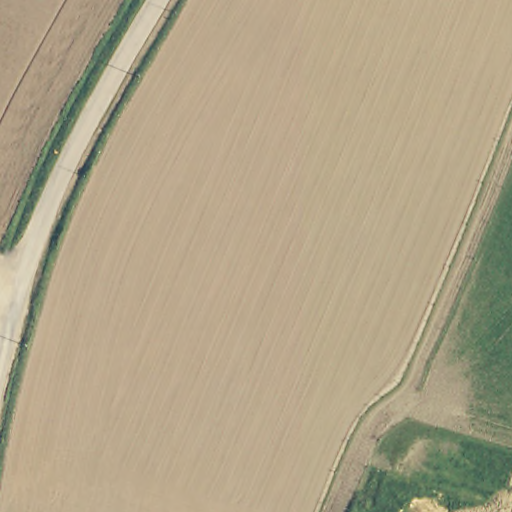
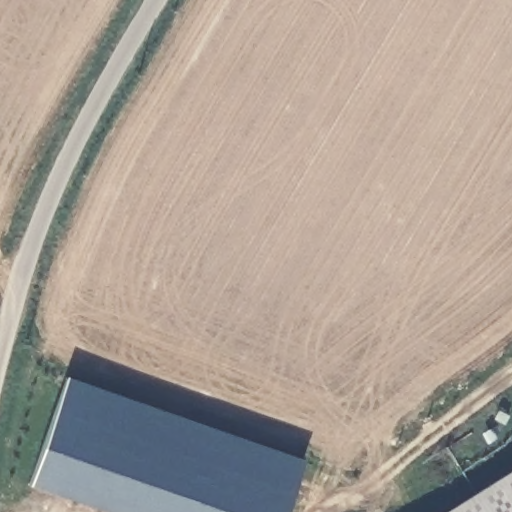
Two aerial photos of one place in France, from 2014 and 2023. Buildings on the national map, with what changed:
new [(287,512),(104,512),(28,486),(65,377),(304,459),(287,512)]
unchanged [(512,512),(445,512),(512,470),(512,512)]

